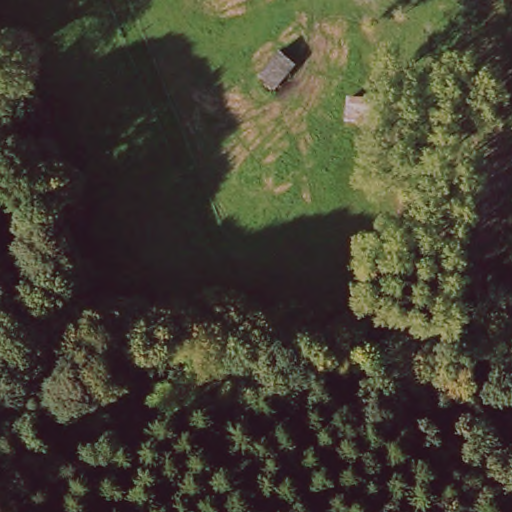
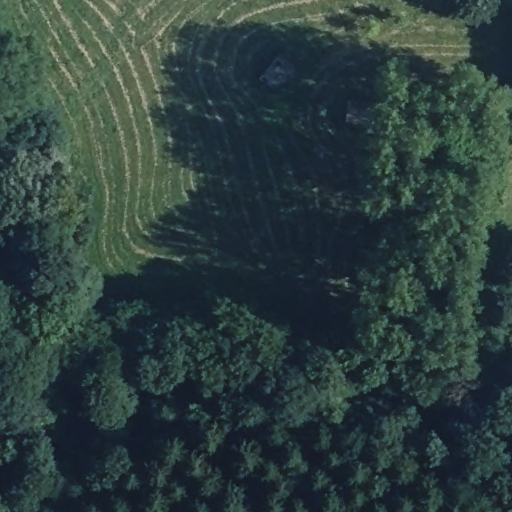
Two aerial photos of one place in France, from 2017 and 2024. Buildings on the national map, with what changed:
unchanged [(283,59),(298,71),(279,95),(264,84),(283,59)]

